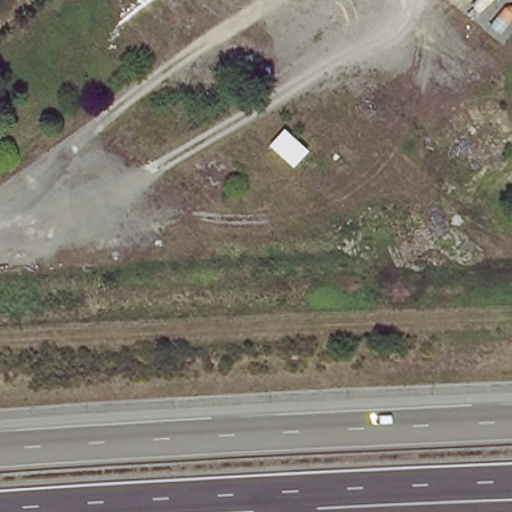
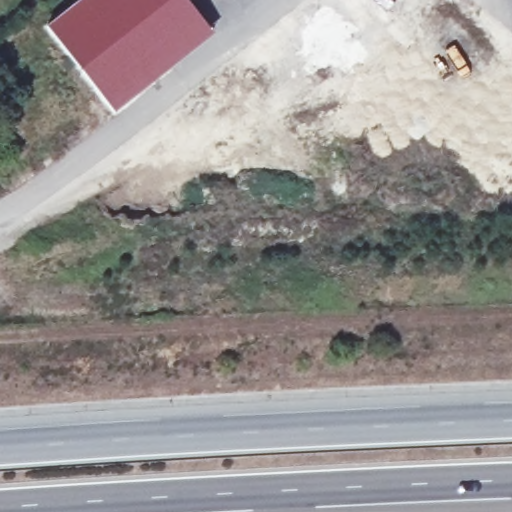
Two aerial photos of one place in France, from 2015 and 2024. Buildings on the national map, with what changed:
new [(113,111),(46,27),(80,0),(185,0),(213,35),(113,111)]
demolished [(263,142),(283,121),(311,147),(290,167),(263,142)]

